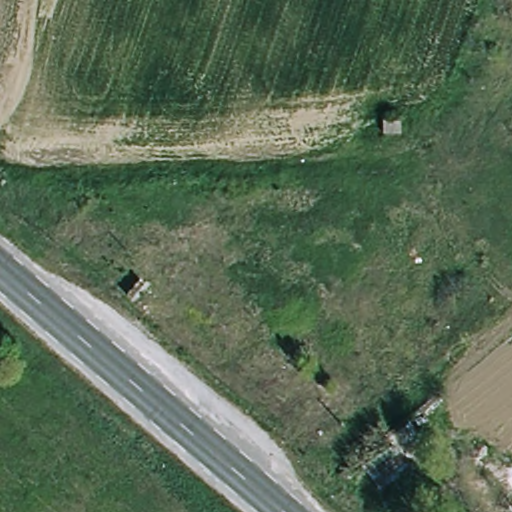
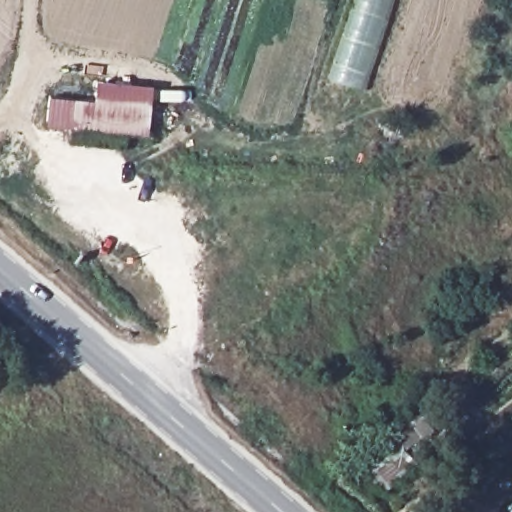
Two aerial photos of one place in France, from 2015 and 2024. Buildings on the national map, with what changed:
new [(366,88),(328,78),(353,0),(395,0),(366,88)]
new [(151,87),(146,136),(70,129),(73,99),(93,101),(93,81),(151,87)]
unchanged [(402,120),(402,135),(384,134),(384,120),(402,120)]
unchanged [(385,492),(361,466),(393,441),(416,465),(385,492)]

